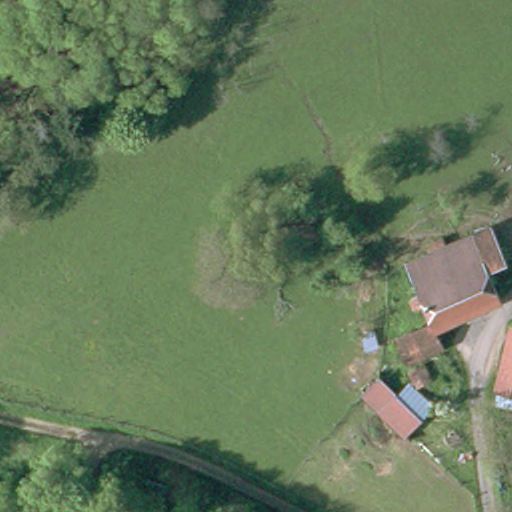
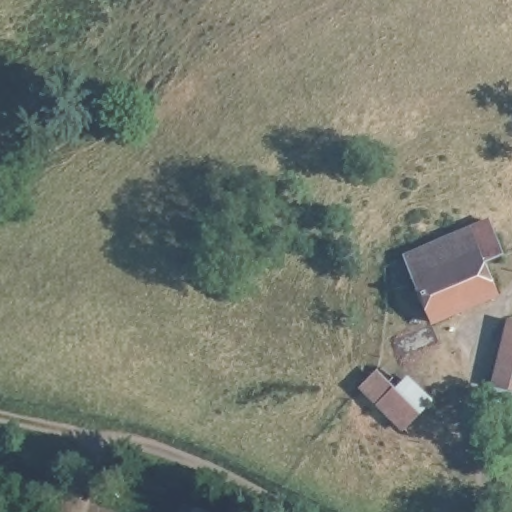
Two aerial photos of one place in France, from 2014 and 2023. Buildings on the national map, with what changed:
unchanged [(406,347),(398,326),(412,321),(426,315),(417,294),(409,297),(404,285),(413,282),(403,257),(470,229),(488,222),(501,256),(483,263),(494,292),(427,318),(434,336),(406,347)]
unchanged [(491,381),(502,317),(512,320),(512,403),(489,397),(491,381)]
unchanged [(414,359),(419,368),(414,373),(406,364),(414,359)]
unchanged [(399,432),(354,389),(374,367),(392,385),(404,374),(431,399),(399,432)]

